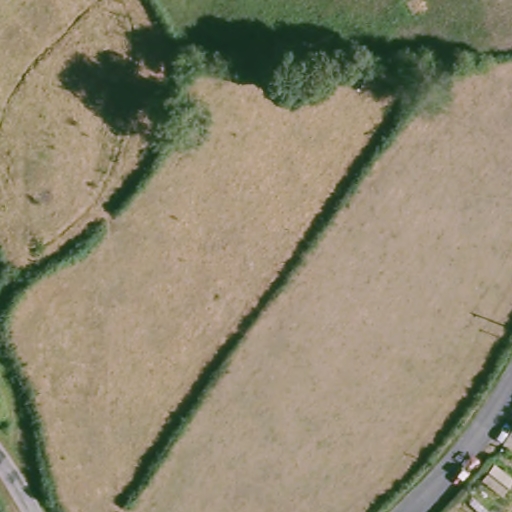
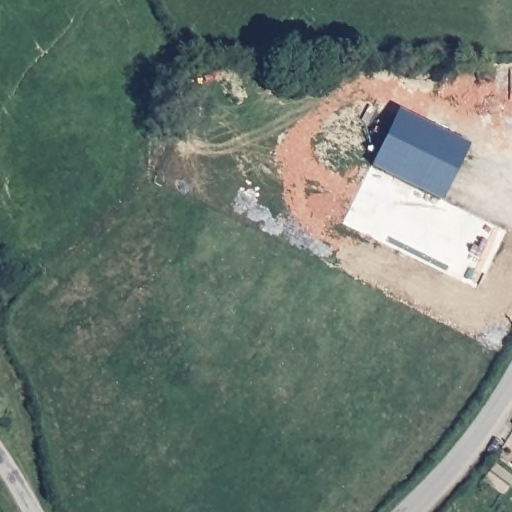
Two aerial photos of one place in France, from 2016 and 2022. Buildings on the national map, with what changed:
new [(440,202),(370,168),(398,110),(468,144),(440,202)]

